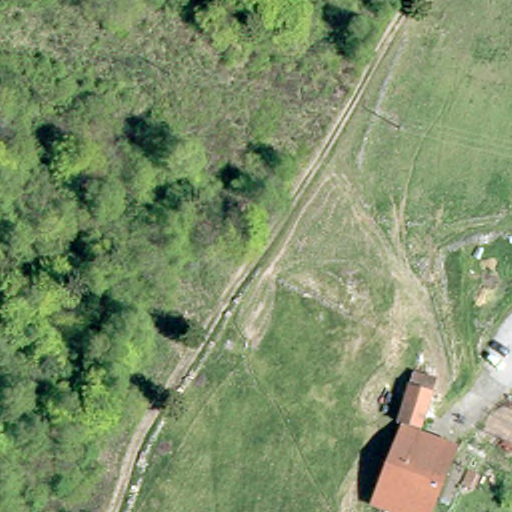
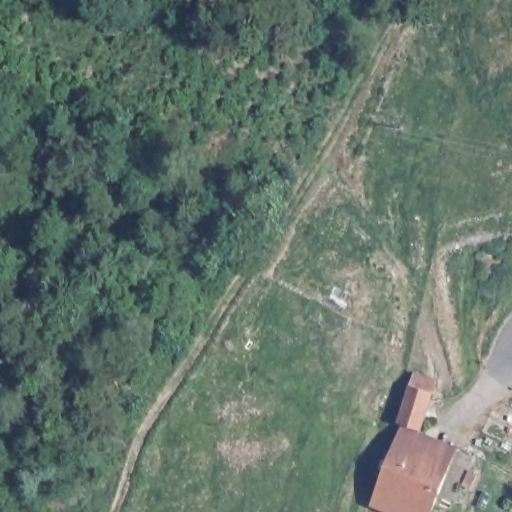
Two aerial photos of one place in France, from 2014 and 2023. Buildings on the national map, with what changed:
unchanged [(438,386),(418,435),(406,430),(397,425),(416,377),(438,386)]
unchanged [(427,438),(425,443),(457,457),(433,512),(381,512),(374,509),(406,430),(418,435),(427,438)]

